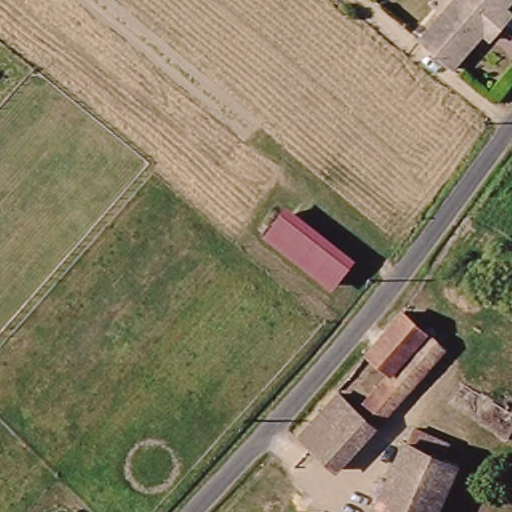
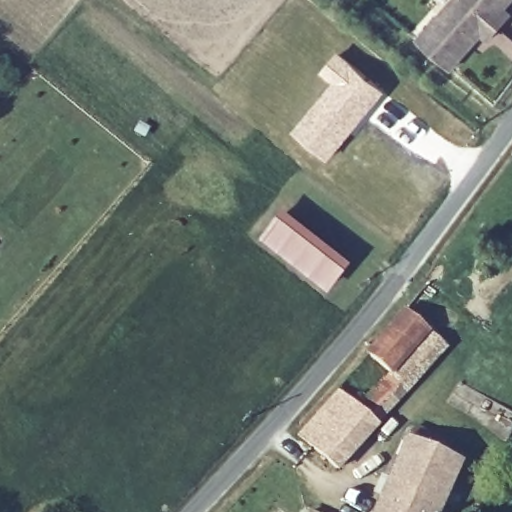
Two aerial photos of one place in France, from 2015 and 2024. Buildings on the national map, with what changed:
unchanged [(456,68),(423,38),(457,0),(512,0),(512,4),(509,7),(512,10),(512,18),(494,38),(488,32),(456,68)]
new [(334,83),(321,71),(340,50),(387,89),(330,160),(294,129),(334,83)]
unchanged [(334,284),(274,233),(291,212),(352,263),(334,284)]
unchanged [(345,389),(362,405),(393,371),(371,352),(408,310),(451,348),(342,470),(303,435),(345,389)]
unchanged [(408,442),(411,442),(418,429),(453,445),(446,458),(460,465),(438,512),(376,512),(408,442)]
unchanged [(314,512),(309,512),(310,510),(314,512)]

